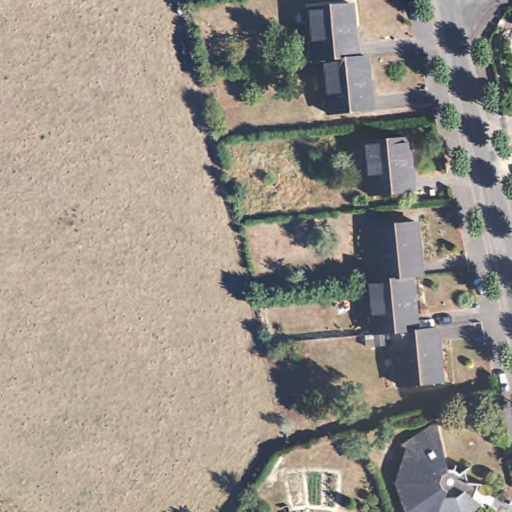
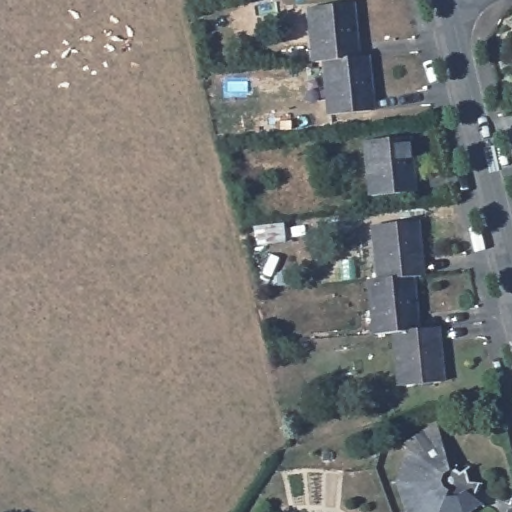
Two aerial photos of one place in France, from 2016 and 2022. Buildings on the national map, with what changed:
unchanged [(351,9),(356,63),(324,66),(315,67),(310,12),(351,9)]
unchanged [(356,63),(366,62),(371,116),(330,120),(324,66),(356,63)]
unchanged [(407,142),(412,197),(371,201),(366,146),(407,142)]
unchanged [(419,227),(425,282),(415,283),(384,285),(379,230),(419,227)]
unchanged [(415,283),(420,335),(400,337),(379,339),(374,286),(384,285),(415,283)]
unchanged [(441,333),(445,388),(405,391),(400,337),(420,335),(441,333)]
unchanged [(436,429),(446,474),(454,474),(459,479),(464,476),(467,488),(471,489),(466,499),(480,509),(475,512),(405,512),(397,486),(407,455),(402,451),(436,429)]

